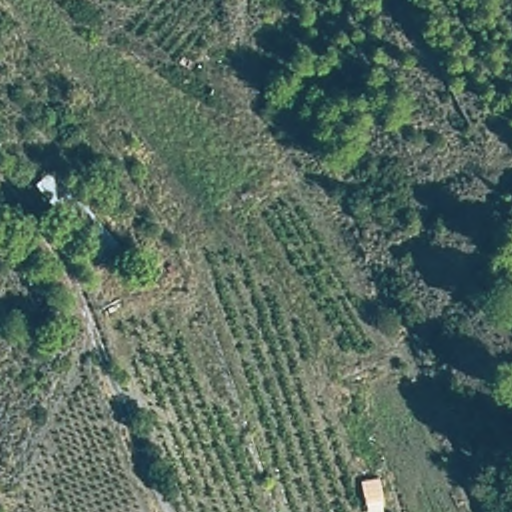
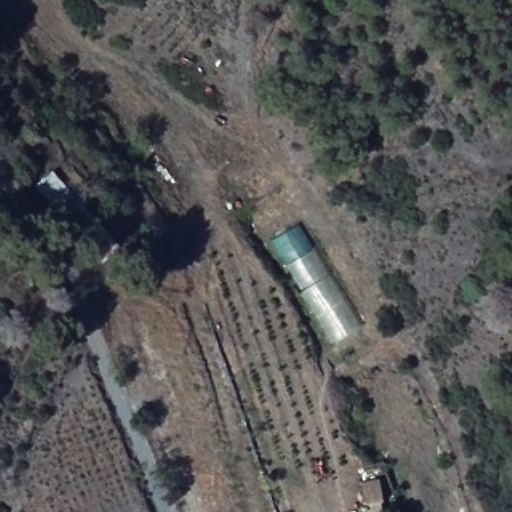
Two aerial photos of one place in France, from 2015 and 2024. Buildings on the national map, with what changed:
unchanged [(120,236),(105,253),(35,184),(55,162),(120,236)]
new [(361,325),(333,343),(271,242),(299,223),(361,325)]

